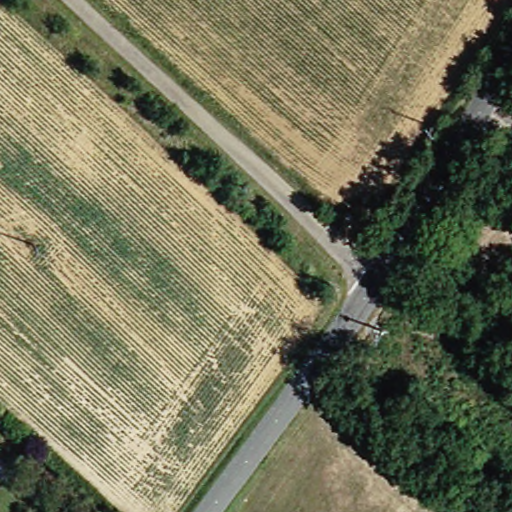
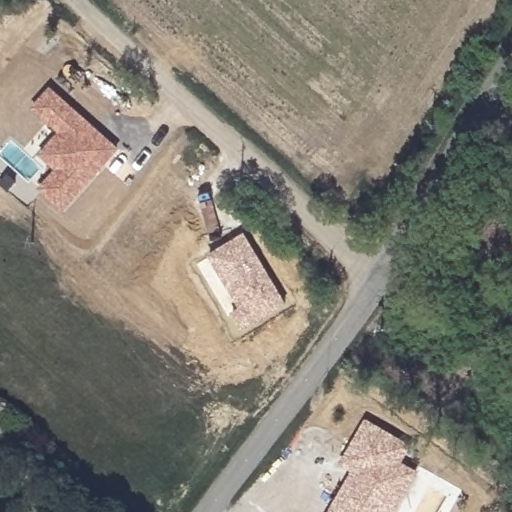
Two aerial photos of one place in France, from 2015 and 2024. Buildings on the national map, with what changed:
new [(37,189),(55,170),(37,154),(57,133),(30,107),(50,87),(120,149),(62,213),(37,189)]
new [(230,313),(238,309),(207,255),(244,234),(286,304),(241,332),(230,313)]
new [(338,464),(365,419),(412,447),(402,463),(419,472),(396,512),(328,512),(351,472),(338,464)]

